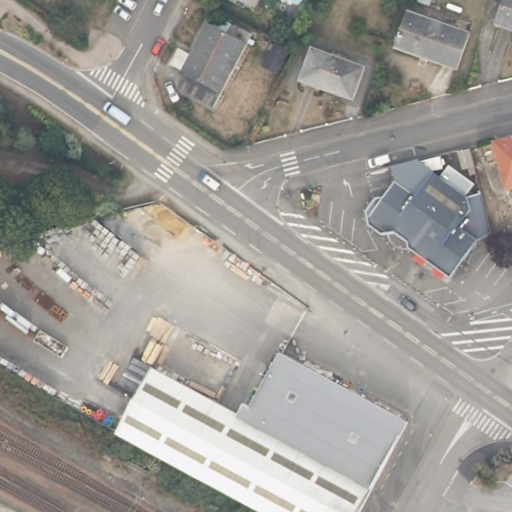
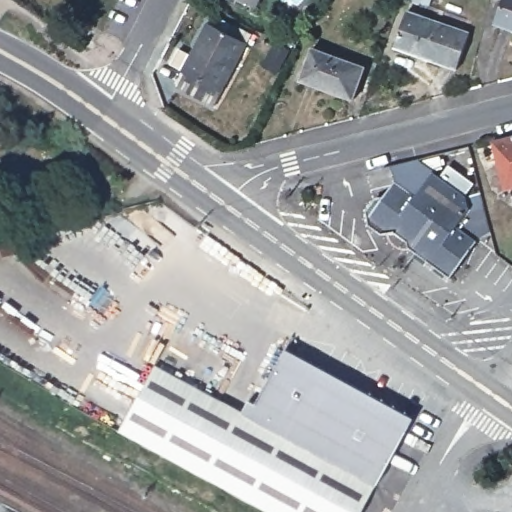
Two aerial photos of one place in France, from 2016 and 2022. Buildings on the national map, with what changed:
unchanged [(496,23),(505,0),(512,0),(512,29),(496,23)]
unchanged [(470,32),(457,68),(395,46),(408,10),(470,32)]
unchanged [(189,76),(175,69),(183,54),(194,60),(211,27),(250,47),(217,110),(181,91),(189,76)]
unchanged [(364,69),(353,101),(300,81),(312,50),(364,69)]
unchanged [(508,189),(495,142),(512,137),(512,188),(508,189)]
unchanged [(408,244),(407,237),(395,228),(381,229),(367,220),(366,208),(376,196),(384,194),(395,179),(415,194),(433,171),(465,196),(466,209),(455,224),(475,239),(454,266),(449,273),(439,266),(408,244)]
unchanged [(118,439),(153,375),(238,419),(245,407),(253,411),(281,358),(407,425),(361,512),(257,512),(118,439)]

